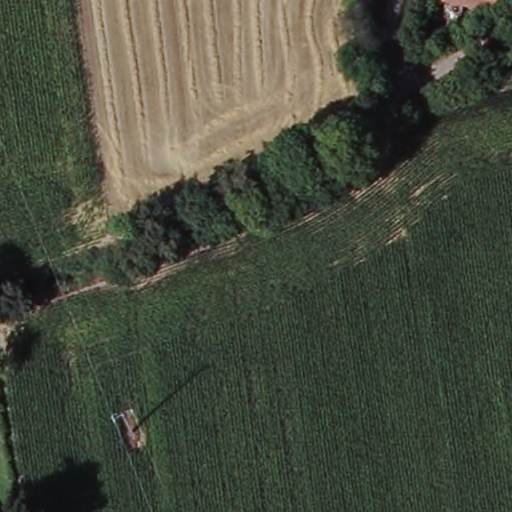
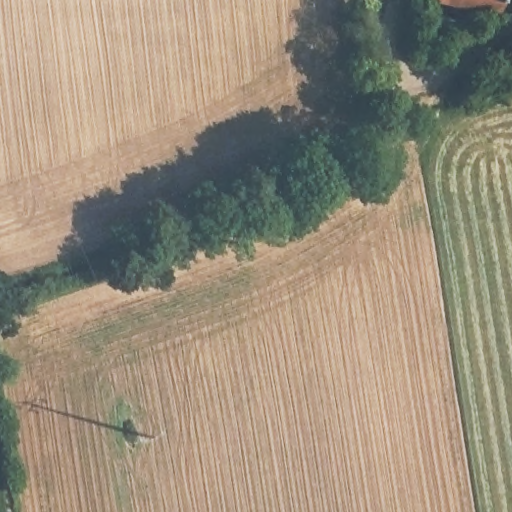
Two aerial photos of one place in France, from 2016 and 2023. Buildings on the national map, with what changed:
unchanged [(454,0),(498,0),(495,11),(454,0)]

